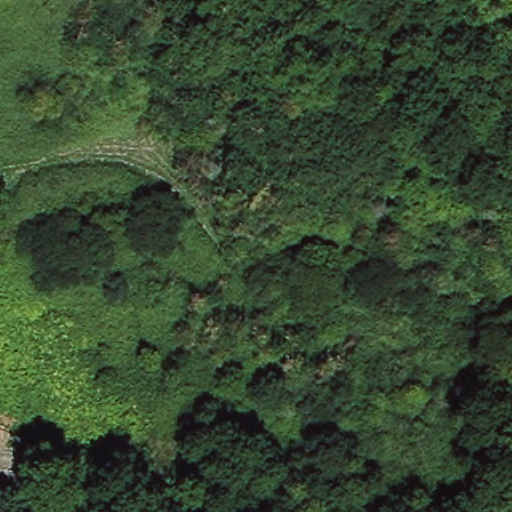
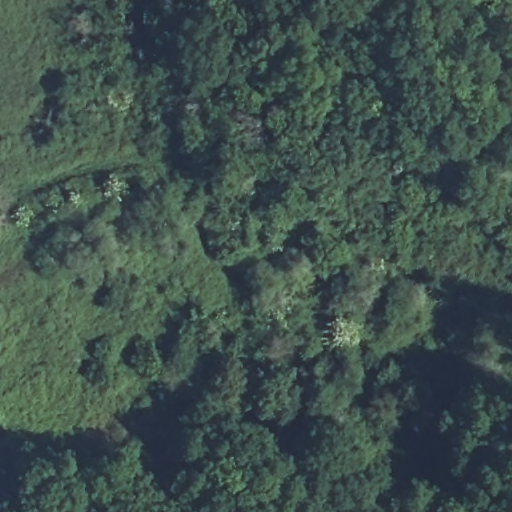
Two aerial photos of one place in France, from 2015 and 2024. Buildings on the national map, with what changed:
[]

